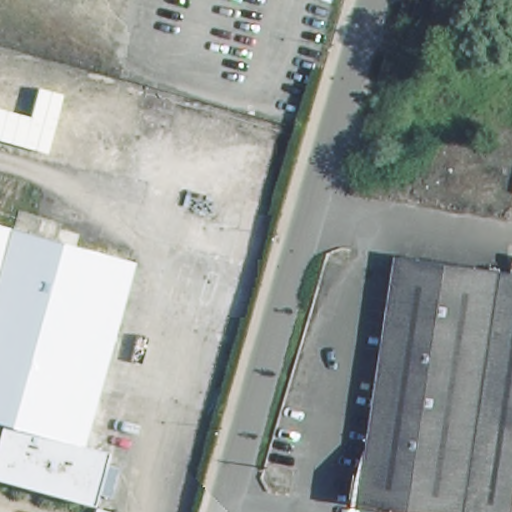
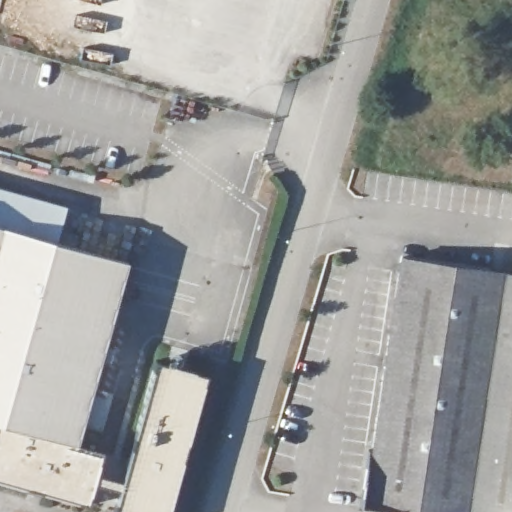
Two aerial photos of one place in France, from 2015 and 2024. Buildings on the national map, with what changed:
unchanged [(75,438),(93,443),(102,445),(85,500),(0,477),(0,219),(126,253),(75,438)]
unchanged [(392,512),(370,512),(406,261),(512,276),(512,512),(421,512),(392,508),(392,512)]
new [(123,479),(155,359),(206,374),(168,512),(118,512),(115,511),(120,491),(90,483),(93,472),(123,479)]
unchanged [(421,512),(392,512),(392,508),(421,512)]

